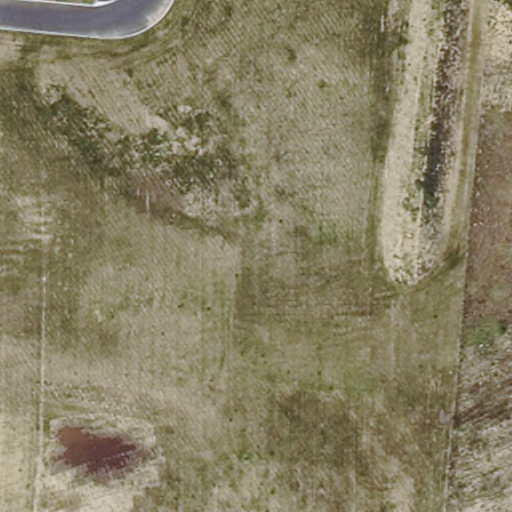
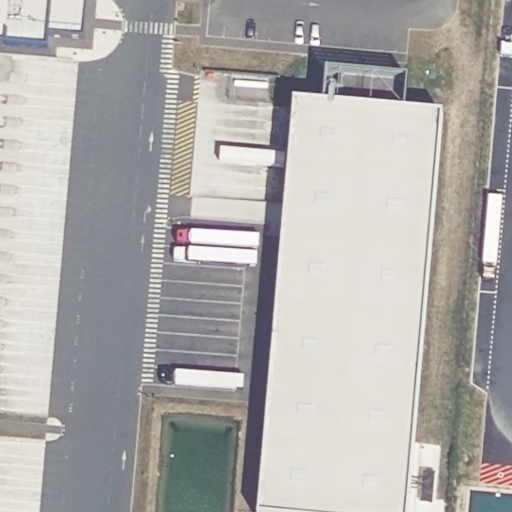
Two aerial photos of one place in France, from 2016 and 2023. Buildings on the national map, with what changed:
new [(33,31),(32,42),(0,39),(0,0),(73,0),(70,35),(33,31)]
new [(323,94),(327,62),(391,69),(388,101),(426,105),(385,512),(375,512),(238,498),(280,90),(323,94)]

